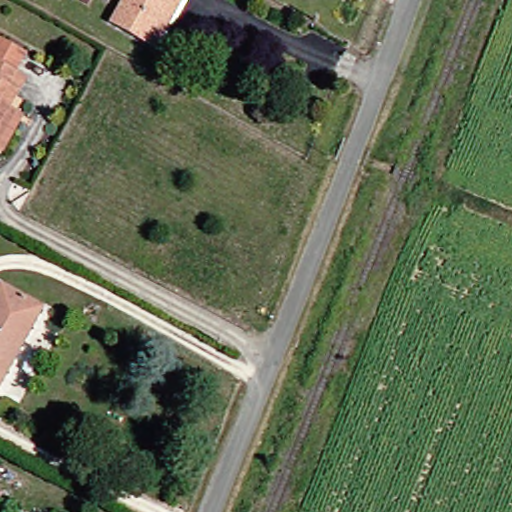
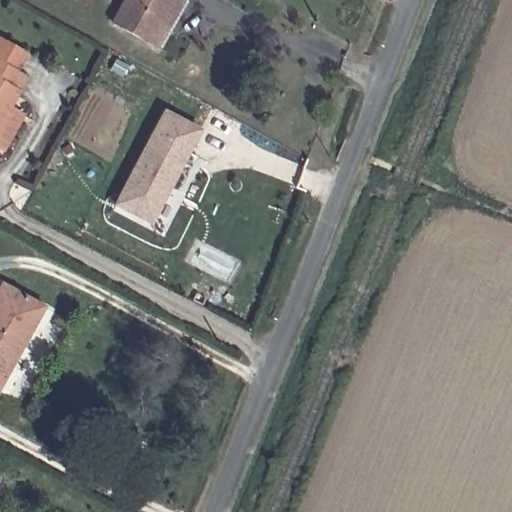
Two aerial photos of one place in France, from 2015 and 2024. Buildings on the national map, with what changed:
unchanged [(145,41),(108,20),(119,0),(179,0),(155,46),(145,41)]
unchanged [(18,56),(10,71),(19,77),(1,109),(14,117),(0,142),(0,44),(18,56)]
new [(154,223),(119,205),(167,112),(202,130),(172,187),(165,200),(154,223)]
unchanged [(35,307),(0,372),(0,287),(35,307)]

